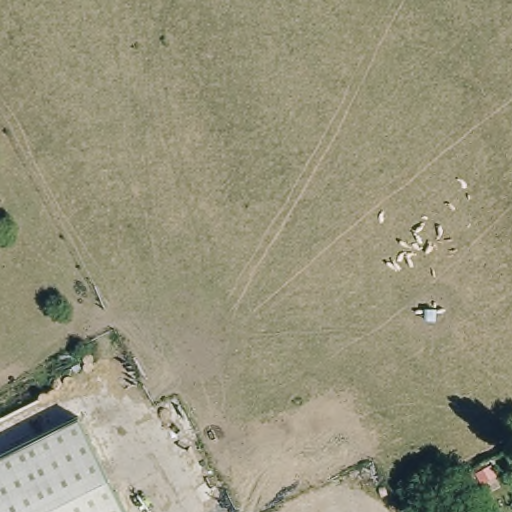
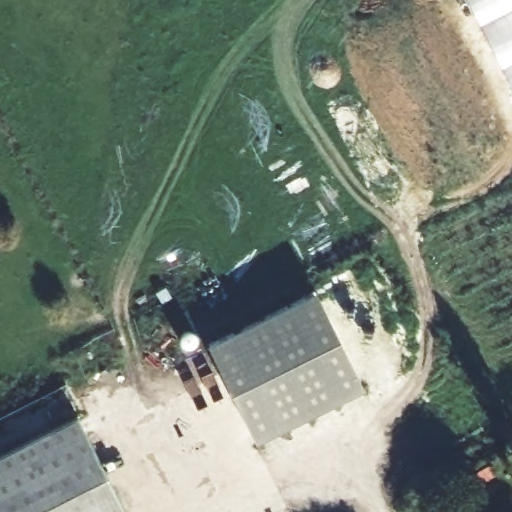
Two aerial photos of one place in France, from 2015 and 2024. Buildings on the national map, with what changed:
new [(465,0),(512,0),(512,91),(465,0)]
new [(365,390),(258,445),(209,348),(317,293),(365,390)]
unchanged [(0,454),(71,418),(121,512),(0,512),(0,454)]

